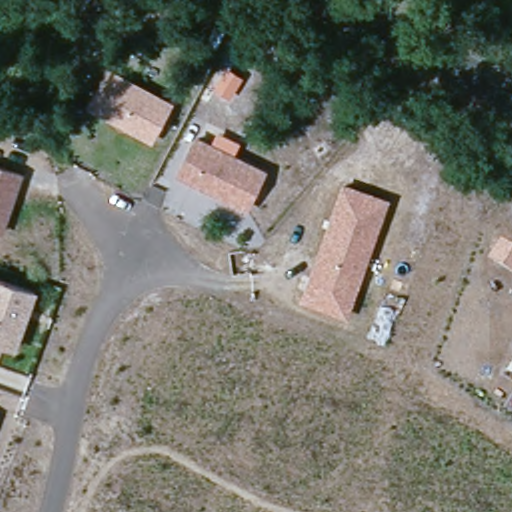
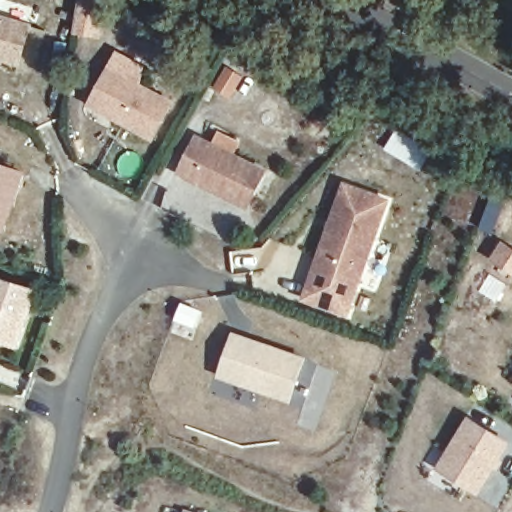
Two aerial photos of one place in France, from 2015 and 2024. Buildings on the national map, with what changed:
new [(32,27),(47,32),(38,61),(24,56),(21,66),(0,61),(0,13),(32,24),(32,27)]
unchanged [(85,101),(107,62),(174,100),(153,141),(85,101)]
unchanged [(196,133),(267,169),(247,210),(175,173),(196,133)]
unchanged [(5,229),(0,228),(0,161),(26,168),(5,229)]
unchanged [(388,199),(347,310),(306,295),(344,187),(388,199)]
unchanged [(0,341),(0,277),(37,289),(17,346),(0,341)]
new [(217,378),(233,332),(307,358),(291,404),(217,378)]
new [(511,442),(477,496),(435,471),(468,416),(511,442)]
new [(192,512),(184,512),(185,509),(192,512)]

